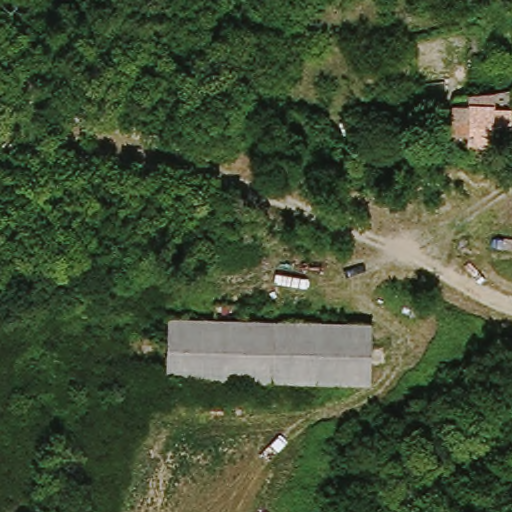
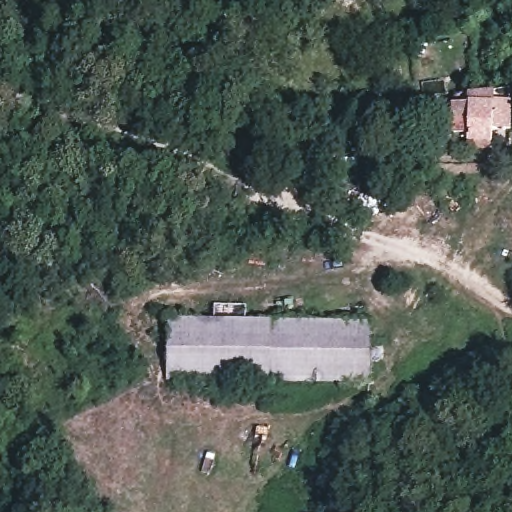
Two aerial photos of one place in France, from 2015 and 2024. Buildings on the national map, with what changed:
unchanged [(462,136),(465,92),(506,86),(512,86),(512,127),(502,127),(486,127),(485,138),(462,136)]
unchanged [(370,388),(172,388),(172,327),(217,327),(245,327),(370,327),(370,388)]

